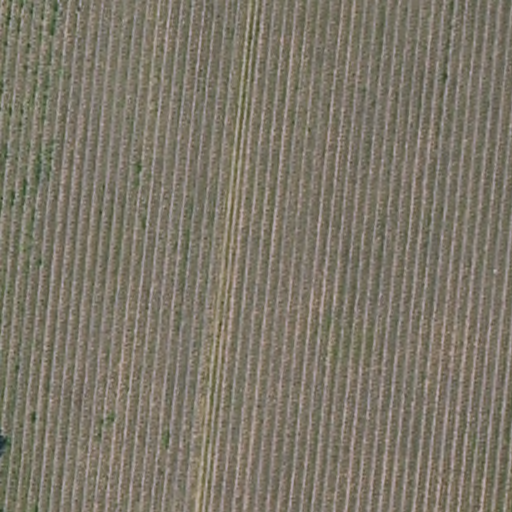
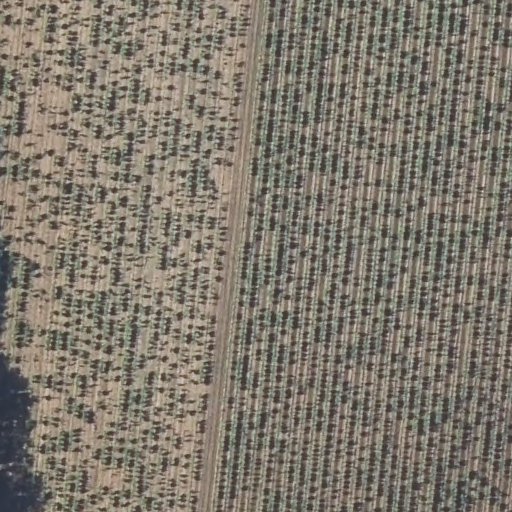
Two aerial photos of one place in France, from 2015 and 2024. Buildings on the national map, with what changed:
[]

